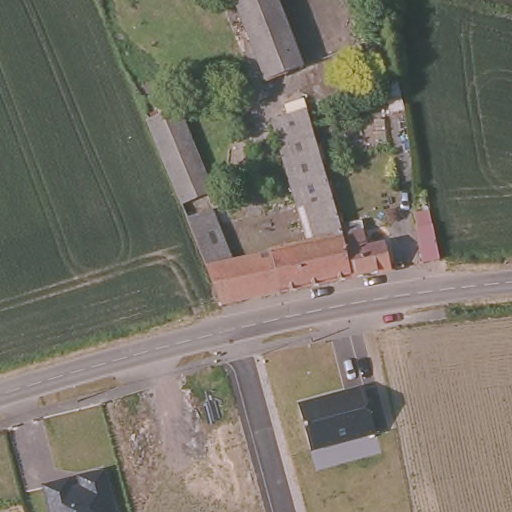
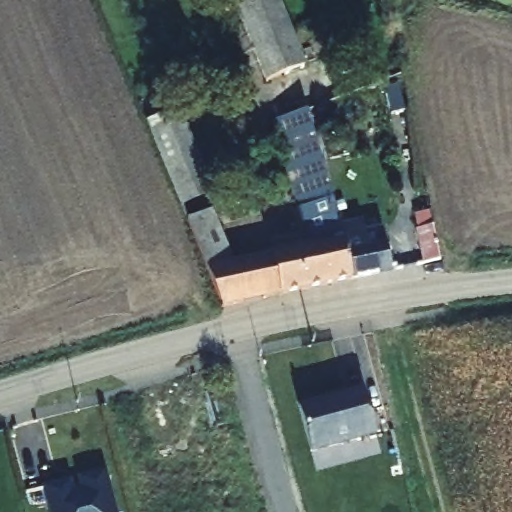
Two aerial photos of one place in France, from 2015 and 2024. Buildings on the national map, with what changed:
unchanged [(301,68),(261,81),(231,0),(275,0),(301,68)]
unchanged [(351,277),(221,303),(214,291),(181,212),(206,203),(229,255),(299,237),(264,115),(279,110),(276,100),(299,94),(300,99),(339,233),(351,277)]
unchanged [(166,96),(211,196),(181,209),(136,108),(166,96)]
unchanged [(443,263),(423,267),(413,232),(433,227),(443,263)]
unchanged [(339,233),(358,228),(364,246),(381,242),(386,265),(387,270),(351,277),(339,233)]
unchanged [(366,387),(379,436),(312,454),(299,403),(366,387)]
unchanged [(119,512),(49,512),(43,489),(108,471),(119,512)]

